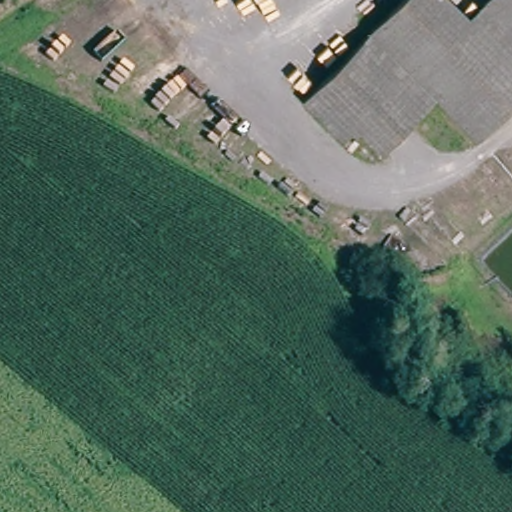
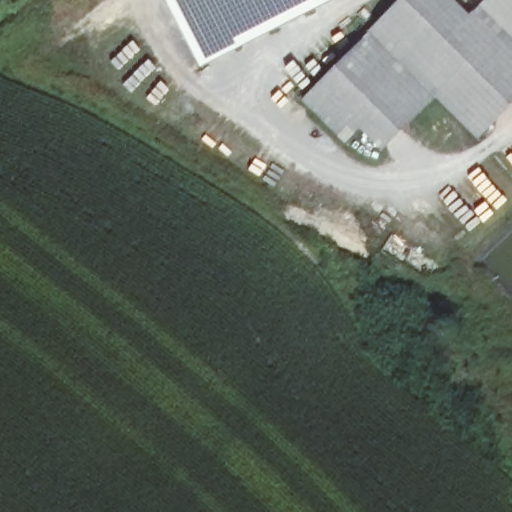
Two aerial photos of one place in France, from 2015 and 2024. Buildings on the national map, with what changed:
demolished [(0,29),(0,0),(14,9),(0,29)]
new [(166,0),(333,0),(201,67),(166,0)]
unchanged [(433,91),(364,163),(301,105),(400,0),(475,0),(480,5),(484,0),(512,0),(512,102),(481,135),(433,91)]

